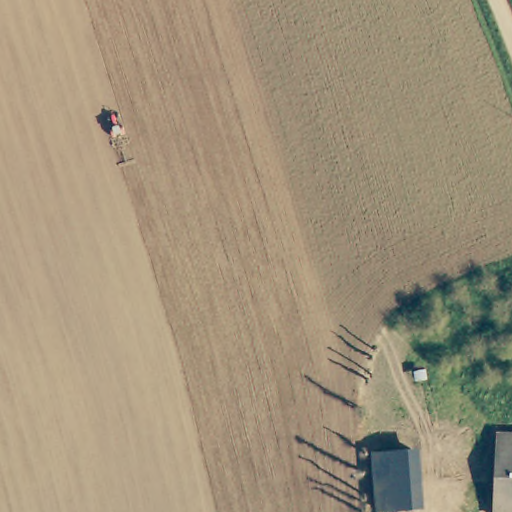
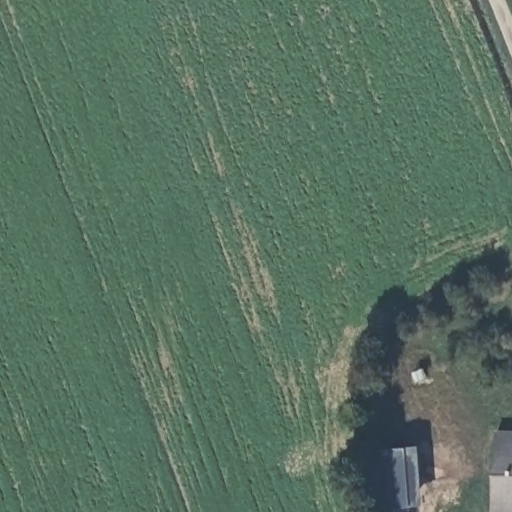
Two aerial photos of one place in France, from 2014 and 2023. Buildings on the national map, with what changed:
unchanged [(512,512),(495,512),(498,468),(500,444),(501,430),(512,431),(512,512)]
unchanged [(374,510),(370,453),(407,450),(408,500),(408,510),(374,510)]

